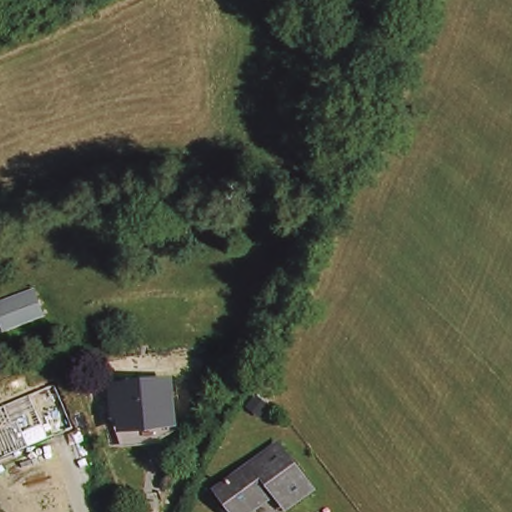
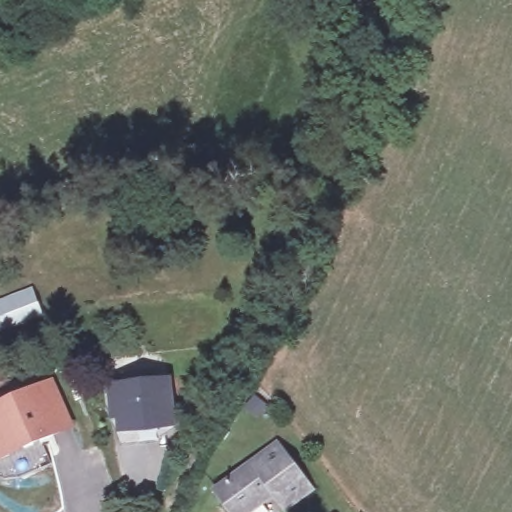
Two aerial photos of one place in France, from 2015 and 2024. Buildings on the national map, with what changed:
unchanged [(48,310),(0,328),(0,327),(0,292),(33,278),(48,310)]
new [(53,377),(76,430),(0,462),(0,401),(53,377)]
unchanged [(121,425),(118,385),(166,383),(168,423),(121,425)]
unchanged [(269,437),(305,478),(264,512),(233,512),(211,486),(269,437)]

